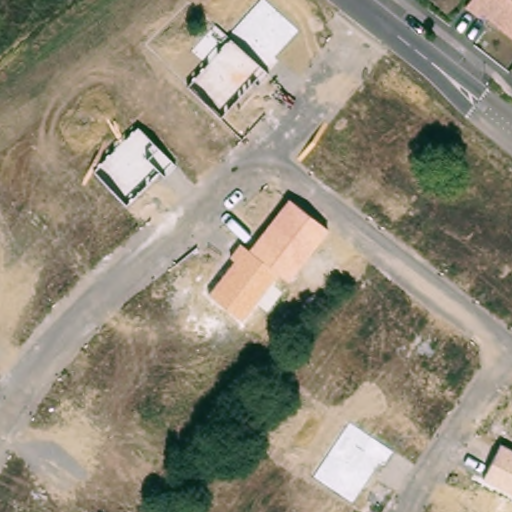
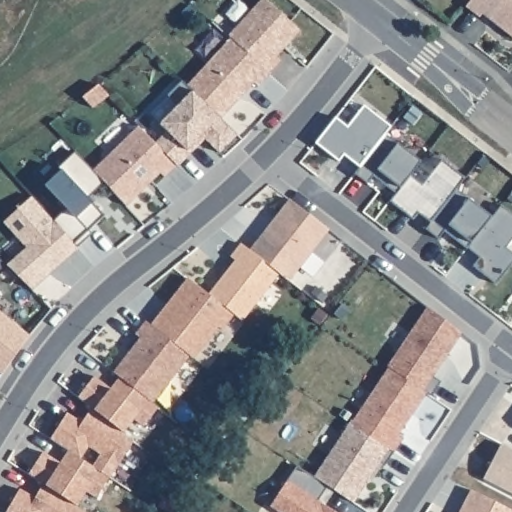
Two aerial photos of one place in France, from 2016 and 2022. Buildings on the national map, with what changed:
new [(277,56),(281,60),(268,73),(266,71),(231,38),(229,36),(261,0),(266,0),(299,31),(277,56)]
unchanged [(512,34),(470,5),(473,0),(512,0),(512,34)]
unchanged [(187,87),(231,38),(266,71),(220,117),(187,87)]
new [(205,139),(177,165),(155,144),(168,130),(161,124),(193,93),(220,117),(237,134),(221,152),(205,139)]
new [(335,116),(347,126),(364,104),(391,126),(385,133),(359,167),(343,154),(338,161),(315,142),(335,116)]
unchanged [(93,170),(137,126),(176,165),(164,177),(159,174),(126,206),(93,170)]
new [(359,167),(385,133),(420,161),(410,175),(396,193),(373,175),(367,183),(354,173),(359,167)]
new [(88,229),(92,232),(34,290),(8,265),(27,247),(4,222),(32,197),(54,221),(66,208),(45,185),(62,170),(59,166),(75,152),(93,170),(104,181),(91,194),(96,199),(93,203),(104,215),(88,229)]
new [(396,193),(410,175),(422,184),(441,159),(465,177),(456,188),(430,222),(418,212),(413,219),(390,201),(396,193)]
new [(430,222),(456,188),(492,216),(467,247),(467,248),(444,231),(438,238),(425,228),(430,222)]
unchanged [(208,294),(235,261),(230,256),(241,243),(249,249),(289,199),(329,231),(287,282),(277,274),(240,321),(208,294)]
new [(492,216),(501,204),(512,213),(512,238),(506,247),(512,252),(512,263),(496,283),(473,265),(479,257),(467,247),(492,216)]
new [(36,496),(45,482),(31,471),(43,451),(60,462),(70,449),(52,437),(68,412),(84,421),(92,407),(79,396),(95,377),(110,388),(121,375),(115,370),(141,336),(136,332),(146,321),(153,325),(188,278),(208,294),(233,315),(223,327),(218,325),(193,357),(189,353),(152,402),(157,407),(144,425),(135,416),(123,432),(133,441),(97,497),(87,490),(78,506),(86,512),(8,512),(20,488),(36,496)]
new [(403,438),(353,502),(336,490),(325,505),(335,512),(281,512),(272,506),(298,467),(315,477),(428,307),(462,332),(398,433),(403,438)]
new [(29,335),(2,372),(0,371),(0,312),(29,335)]
unchanged [(512,450),(512,493),(484,479),(500,443),(512,450)]
new [(512,510),(512,512),(459,512),(470,490),(512,510)]

